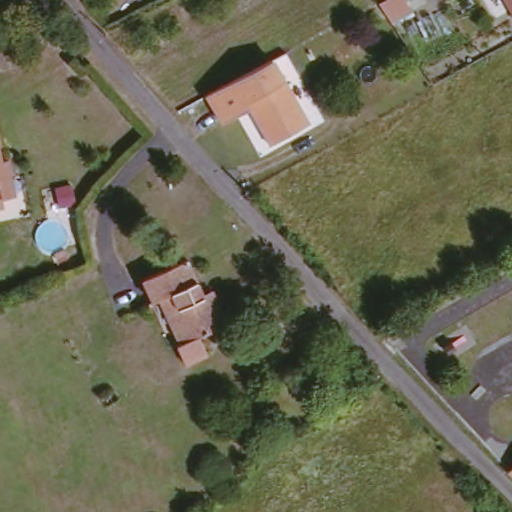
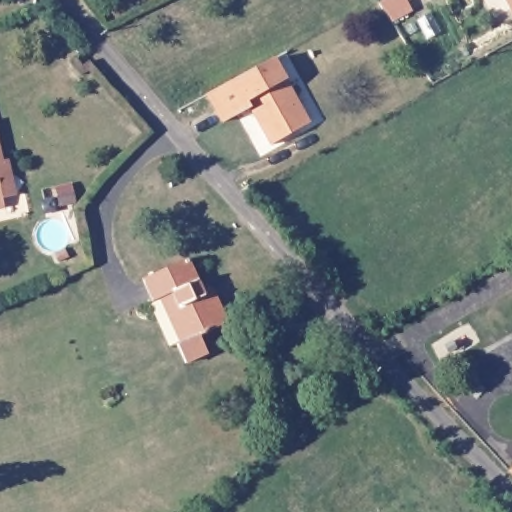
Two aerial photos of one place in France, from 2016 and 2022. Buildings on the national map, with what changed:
unchanged [(409,0),(415,11),(396,21),(384,2),(389,0),(409,0)]
unchanged [(310,128),(271,147),(253,110),(224,123),(210,95),(247,76),(276,61),(310,128)]
unchanged [(0,201),(0,127),(7,162),(13,161),(17,180),(20,197),(8,200),(0,201)]
unchanged [(181,345),(190,340),(166,297),(158,302),(148,283),(188,262),(213,306),(219,302),(231,322),(203,338),(214,360),(195,370),(181,345)]

